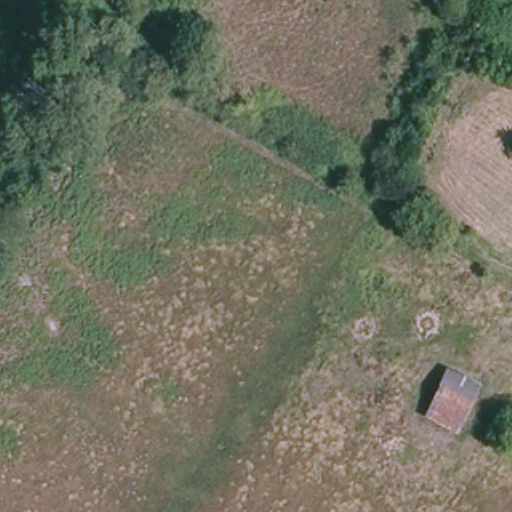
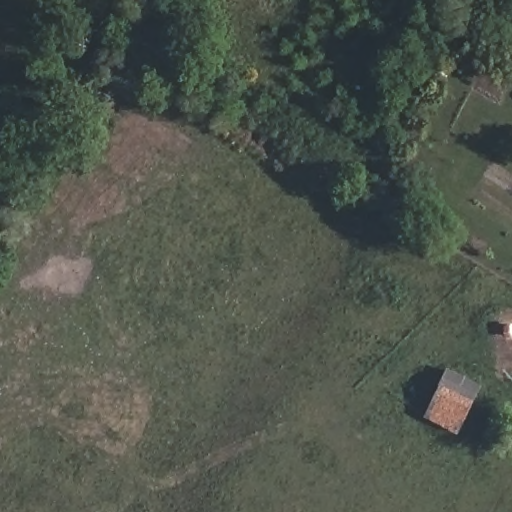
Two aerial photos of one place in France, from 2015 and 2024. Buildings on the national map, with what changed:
unchanged [(478,406),(473,403),(460,437),(427,418),(449,370),(486,384),(478,406)]

